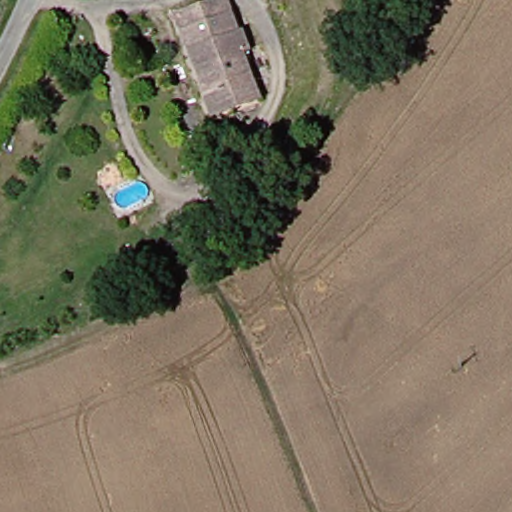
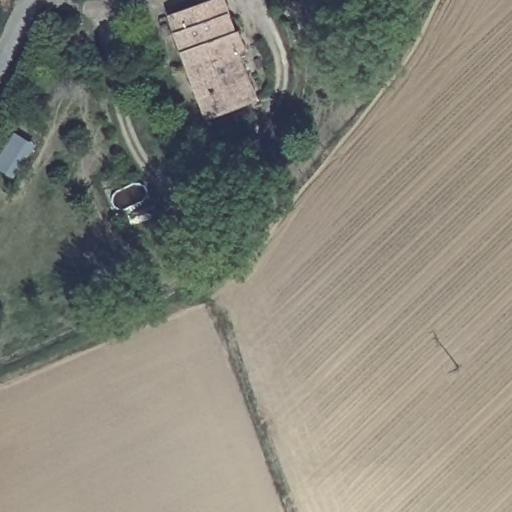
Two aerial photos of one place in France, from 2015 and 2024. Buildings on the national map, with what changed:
unchanged [(199,104),(193,86),(168,22),(215,6),(225,31),(232,29),(238,45),(229,47),(238,72),(245,89),(199,104)]

